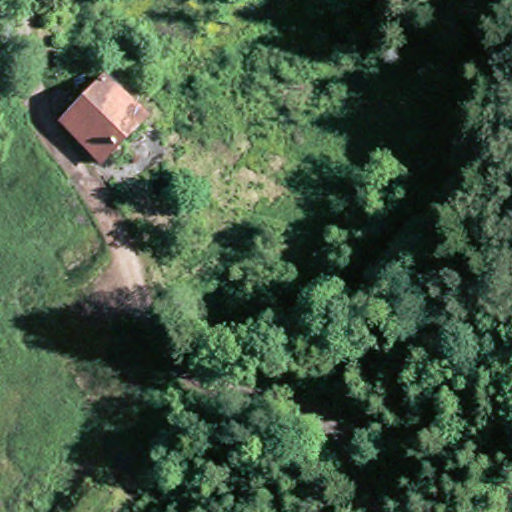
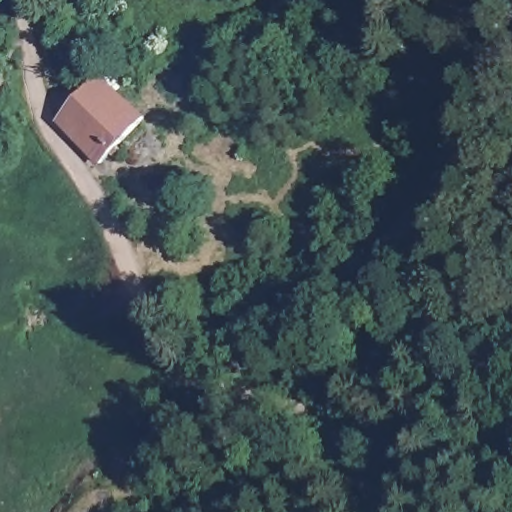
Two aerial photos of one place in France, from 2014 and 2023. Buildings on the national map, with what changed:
unchanged [(142,143),(133,152),(122,142),(99,164),(56,115),(53,90),(87,67),(98,79),(105,71),(149,117),(133,134),(142,143)]

